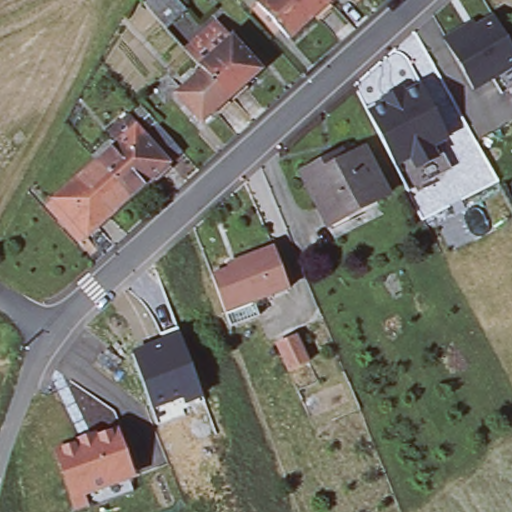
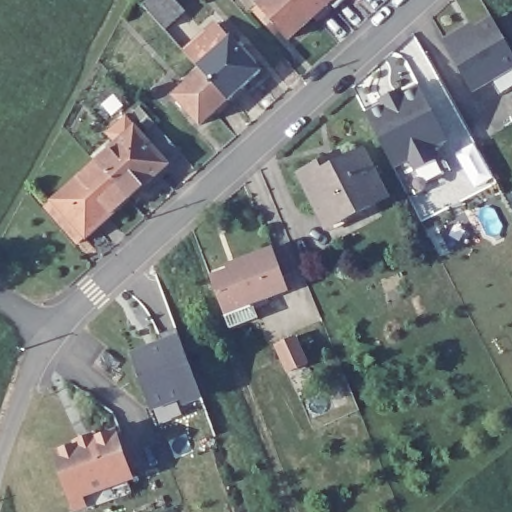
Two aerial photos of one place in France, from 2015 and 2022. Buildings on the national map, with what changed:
unchanged [(149,0),(170,0),(182,13),(165,29),(143,5),(149,0)]
unchanged [(261,2),(259,0),(333,0),(291,36),(261,2)]
unchanged [(512,52),(512,76),(495,86),(485,70),(468,80),(440,31),(459,20),(461,25),(487,10),(505,40),(512,52)]
unchanged [(203,71),(190,56),(222,27),(235,42),(264,75),(231,103),(206,75),(203,71)]
unchanged [(206,75),(231,103),(203,127),(178,99),(206,75)]
unchanged [(446,135),(436,140),(450,166),(444,169),(406,189),(366,110),(402,91),(420,82),(446,135)]
unchanged [(103,141),(120,126),(128,135),(137,145),(150,134),(173,160),(160,171),(161,172),(121,207),(88,170),(110,150),(103,141)]
unchanged [(305,179),(327,168),(347,159),(351,167),(368,159),(389,201),(372,210),(330,230),(305,179)]
unchanged [(88,170),(121,207),(80,245),(45,209),(88,170)]
unchanged [(233,327),(228,314),(215,278),(227,273),(240,269),(238,263),(257,256),(272,250),(288,292),(273,297),(251,305),(256,319),(233,327)]
unchanged [(311,362),(288,373),(275,342),(298,331),(311,362)]
unchanged [(132,351),(181,335),(200,390),(203,400),(184,407),(181,400),(152,411),(132,351)]
unchanged [(129,487),(85,502),(83,498),(73,502),(54,446),(108,427),(115,425),(130,471),(135,485),(130,487),(129,487)]

